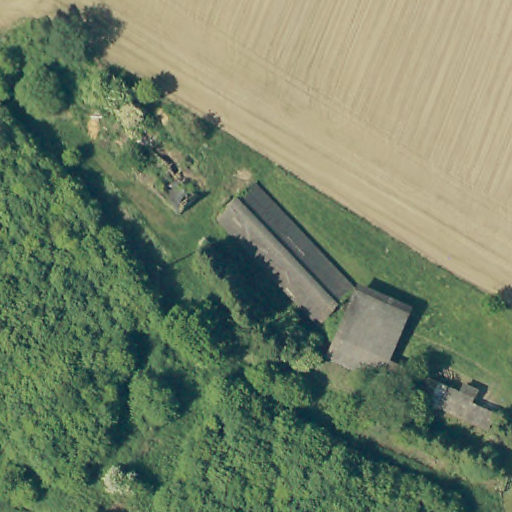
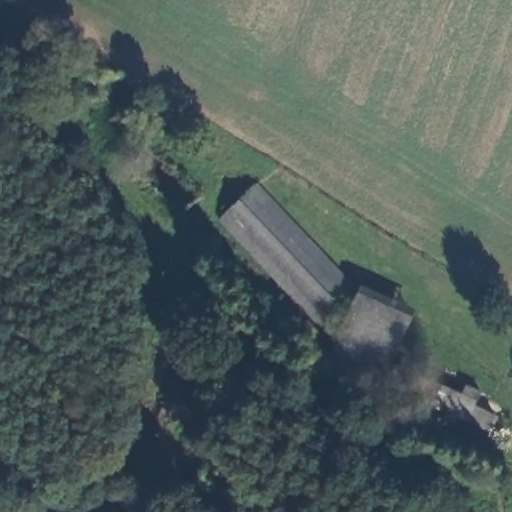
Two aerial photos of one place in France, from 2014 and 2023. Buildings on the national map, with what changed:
unchanged [(22,47),(42,23),(111,79),(91,103),(22,47)]
unchanged [(130,164),(150,146),(200,196),(181,214),(130,164)]
unchanged [(214,218),(251,183),(352,290),(315,325),(214,218)]
unchanged [(324,358),(354,291),(406,314),(385,360),(376,381),(324,358)]
unchanged [(376,381),(385,360),(457,392),(462,384),(475,390),(468,405),(490,415),(484,429),(376,381)]

